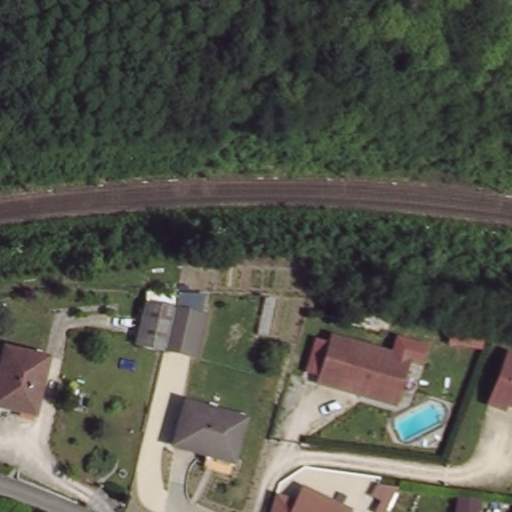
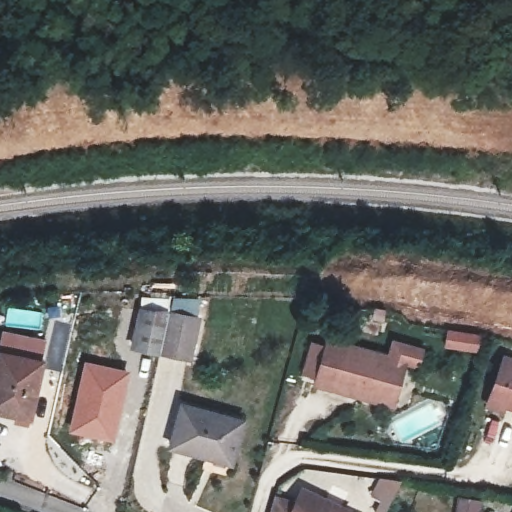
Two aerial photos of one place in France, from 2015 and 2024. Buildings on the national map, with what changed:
unchanged [(136,343),(144,307),(172,310),(164,348),(136,343)]
unchanged [(164,348),(172,310),(199,315),(190,354),(164,348)]
unchanged [(390,399),(357,390),(312,376),(325,331),(404,354),(394,390),(391,399),(390,399)]
unchanged [(502,404),(488,399),(505,351),(512,354),(512,403),(504,400),(502,404)]
unchanged [(42,362),(30,417),(0,411),(0,353),(42,362)]
new [(84,360),(132,370),(116,443),(67,432),(84,360)]
unchanged [(242,421),(231,460),(209,455),(209,457),(170,446),(182,405),(242,421)]
unchanged [(349,508),(347,512),(269,512),(275,495),(292,501),(299,486),(349,508)]

